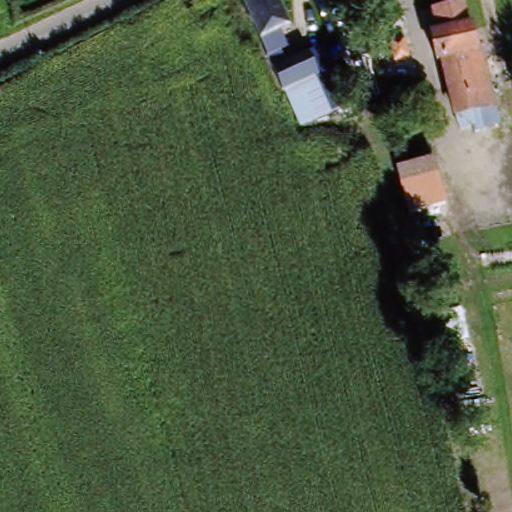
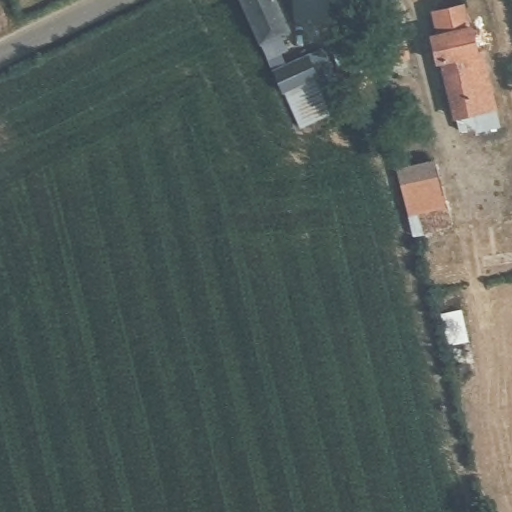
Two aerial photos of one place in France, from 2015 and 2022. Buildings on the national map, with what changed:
unchanged [(281,59),(285,68),(307,58),(317,84),(316,84),(283,99),(280,94),(243,0),(275,0),(290,33),(281,37),(289,56),(281,59)]
unchanged [(440,76),(431,76),(426,39),(431,37),(430,12),(471,10),(478,56),(489,59),(503,132),(457,141),(440,76)]
unchanged [(283,99),(316,84),(333,122),(298,138),(283,99)]
unchanged [(395,169),(435,159),(446,206),(406,215),(395,169)]

